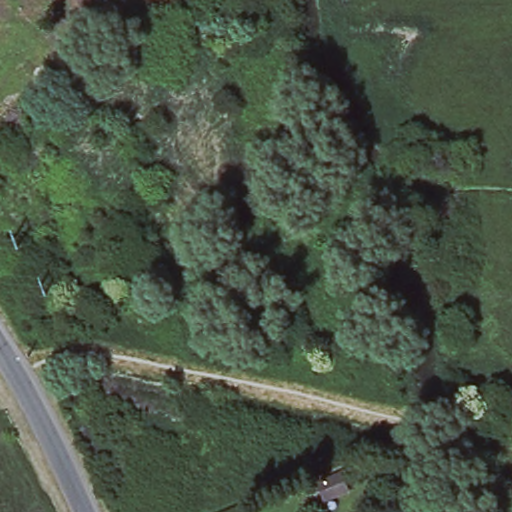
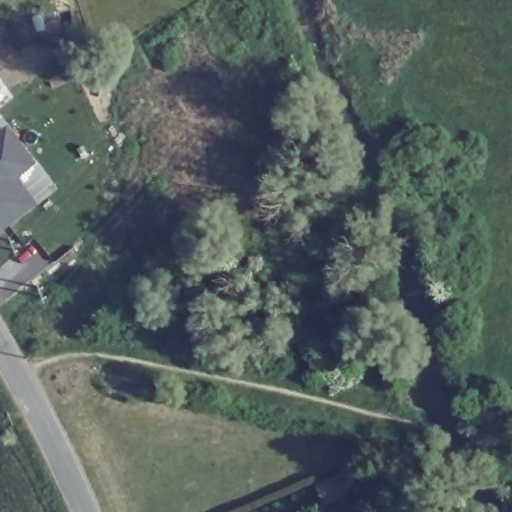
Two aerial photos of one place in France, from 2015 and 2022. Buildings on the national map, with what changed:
new [(37,164),(20,178),(39,203),(0,232),(0,130),(7,124),(37,164)]

